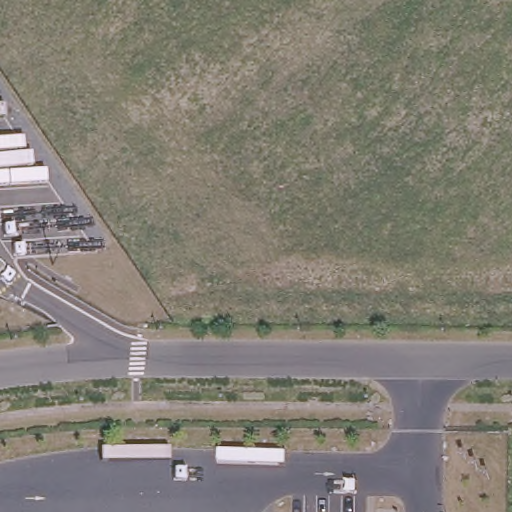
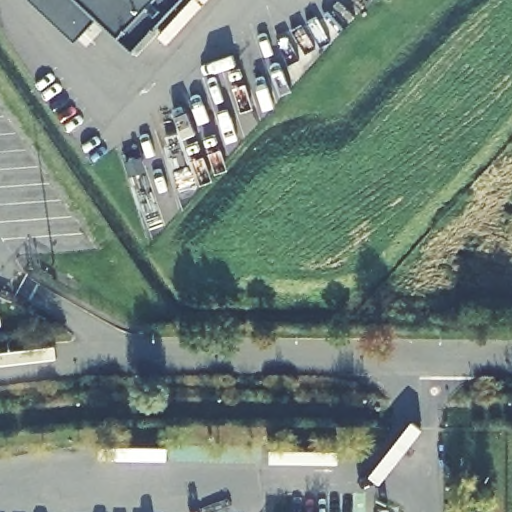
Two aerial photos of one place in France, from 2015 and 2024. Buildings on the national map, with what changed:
new [(99,22),(75,47),(25,0),(75,0),(99,22)]
new [(132,51),(99,22),(75,0),(182,0),(132,51)]

